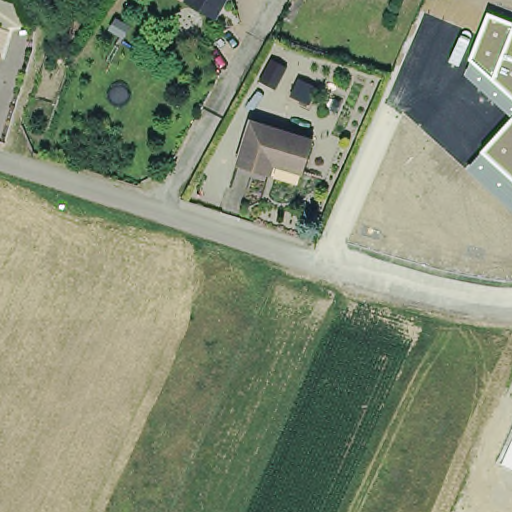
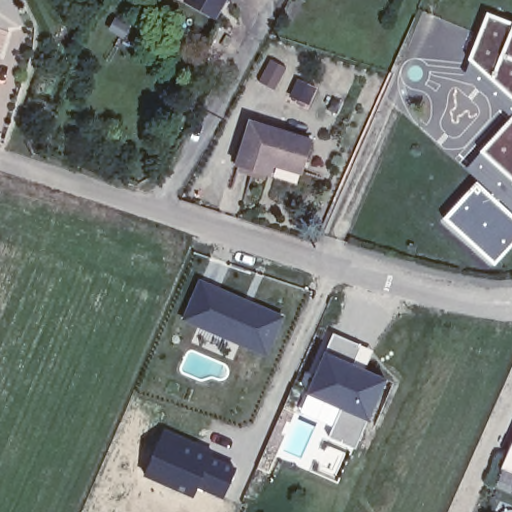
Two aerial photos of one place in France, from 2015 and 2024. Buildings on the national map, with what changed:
unchanged [(187,4),(189,0),(224,0),(212,19),(187,4)]
unchanged [(512,116),(465,74),(488,10),(512,20),(512,210),(466,168),(512,116)]
unchanged [(285,68),(272,90),(256,81),(268,59),(285,68)]
unchanged [(310,140),(300,172),(272,162),(267,174),(235,164),(250,120),(310,140)]
new [(285,315),(266,357),(181,319),(198,278),(285,315)]
new [(359,344),(350,363),(383,378),(354,447),(327,436),(338,405),(307,390),(332,331),(359,344)]
new [(222,498),(197,486),(193,495),(145,473),(162,428),(215,452),(212,457),(237,468),(222,498)]
unchanged [(512,441),(512,472),(500,466),(512,441)]

